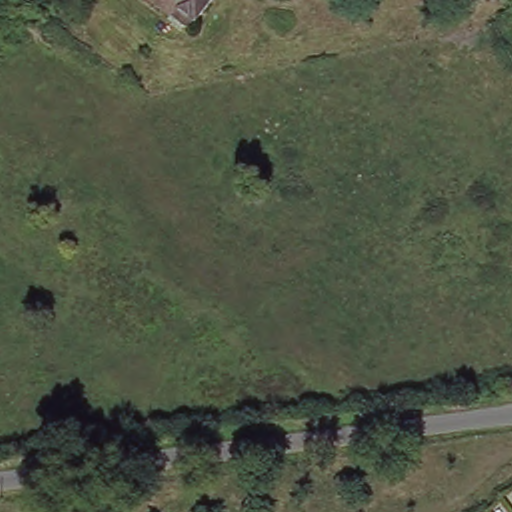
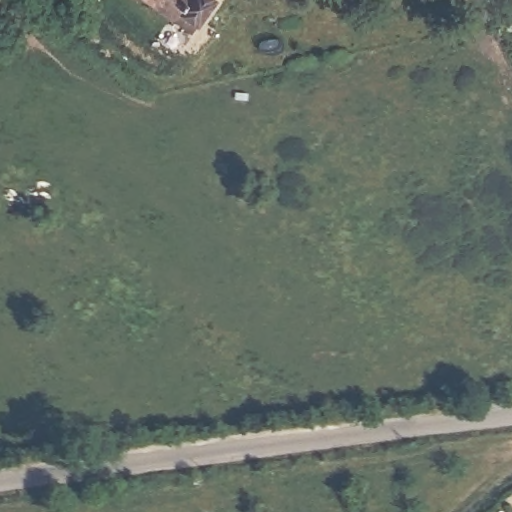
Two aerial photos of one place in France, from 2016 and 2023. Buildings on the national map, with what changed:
unchanged [(196,22),(176,9),(171,20),(144,0),(210,0),(196,22)]

